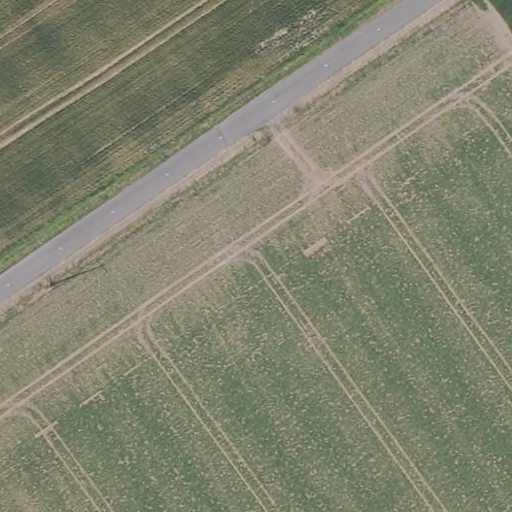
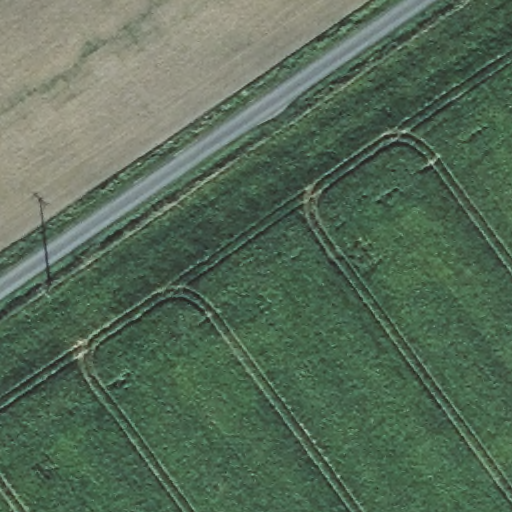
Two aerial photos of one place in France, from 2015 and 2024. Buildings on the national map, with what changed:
[]

